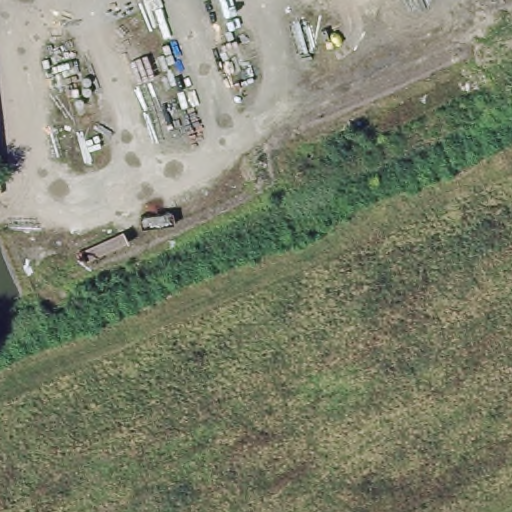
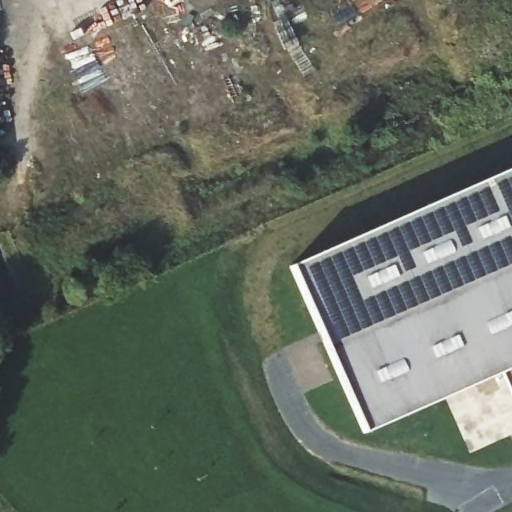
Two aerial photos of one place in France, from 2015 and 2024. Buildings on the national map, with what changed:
new [(291,265),(512,168),(512,399),(499,372),(365,431),(291,265)]

